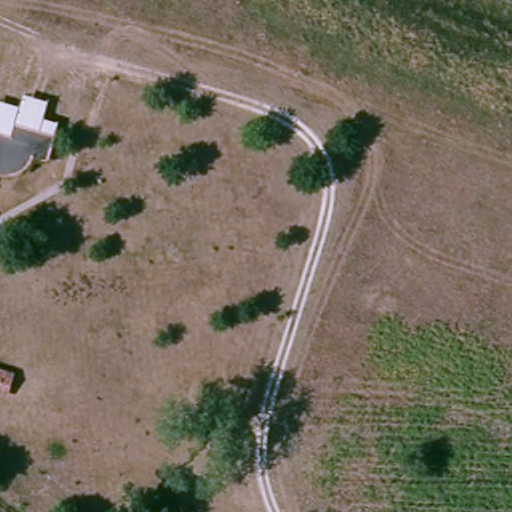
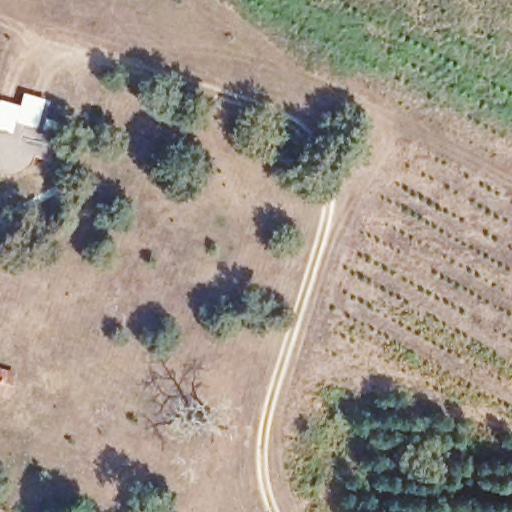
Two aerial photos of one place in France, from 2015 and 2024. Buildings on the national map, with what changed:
unchanged [(24,94),(48,100),(45,117),(59,121),(57,129),(15,119),(13,131),(0,128),(0,101),(20,106),(24,94)]
unchanged [(15,119),(57,129),(49,156),(33,153),(30,162),(11,173),(1,170),(0,170),(0,128),(13,131),(15,119)]

